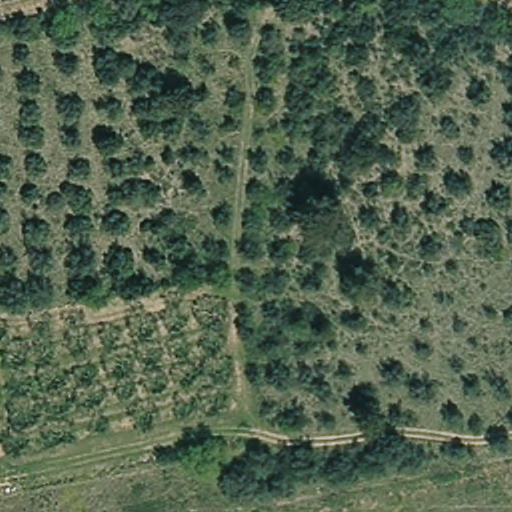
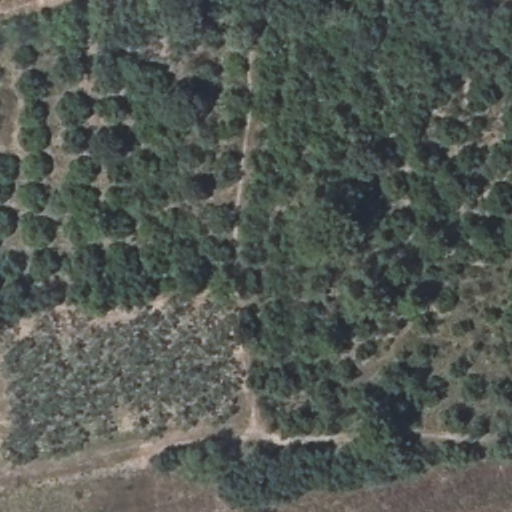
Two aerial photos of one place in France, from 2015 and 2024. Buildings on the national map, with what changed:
[]

